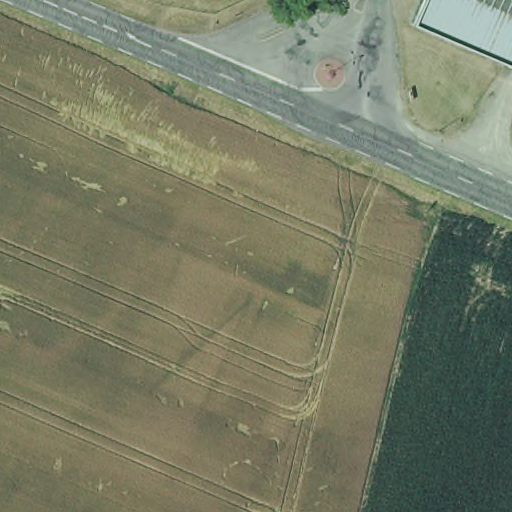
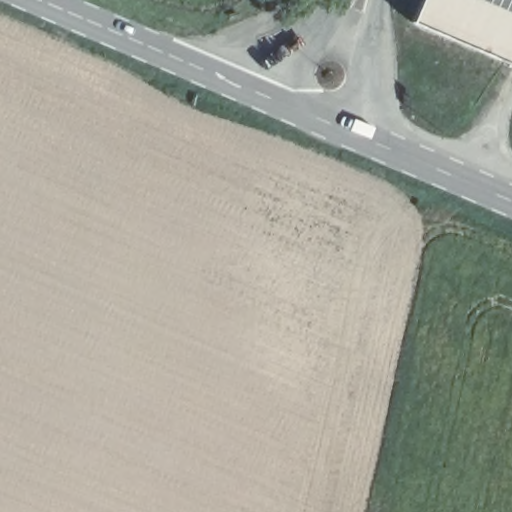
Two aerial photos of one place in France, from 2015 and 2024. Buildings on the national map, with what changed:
unchanged [(410,26),(421,0),(512,0),(512,73),(410,26)]

